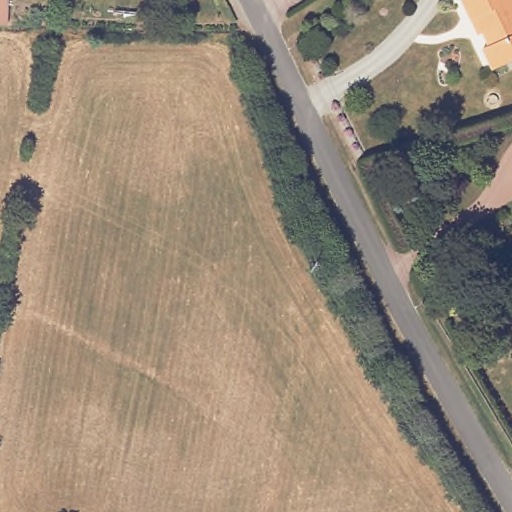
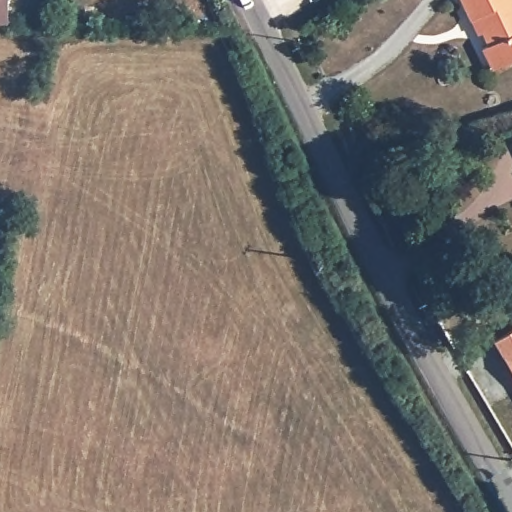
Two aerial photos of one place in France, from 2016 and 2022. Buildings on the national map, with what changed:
unchanged [(11,23),(0,23),(0,0),(11,0),(11,23)]
unchanged [(488,44),(480,28),(476,30),(461,0),(512,0),(512,55),(490,66),(482,47),(488,44)]
new [(512,371),(494,339),(512,328),(512,371)]

